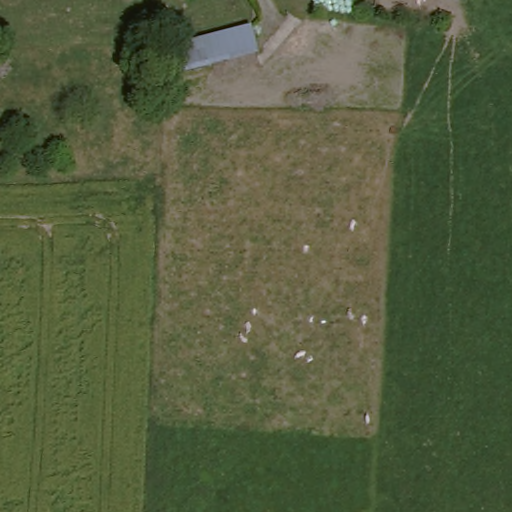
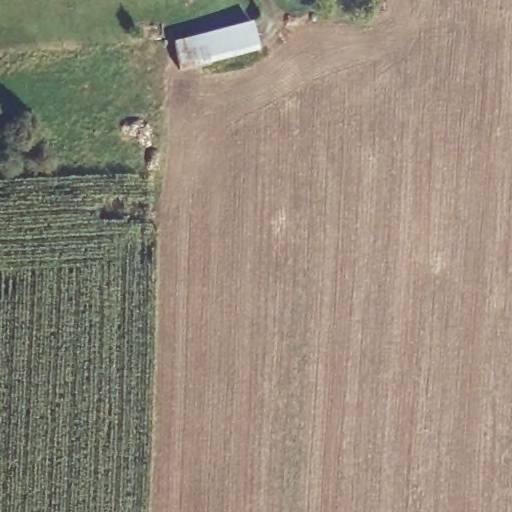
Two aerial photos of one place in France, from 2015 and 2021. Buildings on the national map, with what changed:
unchanged [(253,19),(261,52),(208,68),(202,35),(253,19)]

